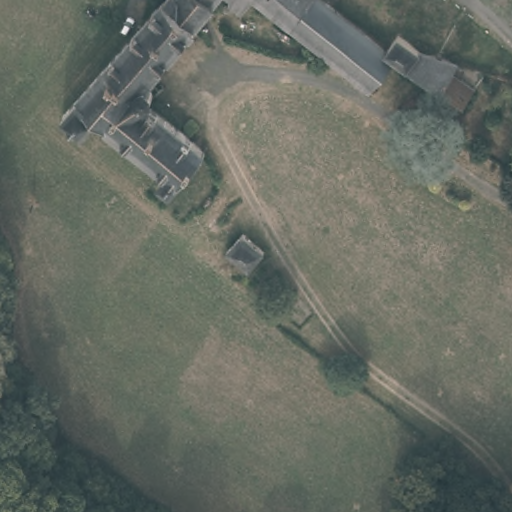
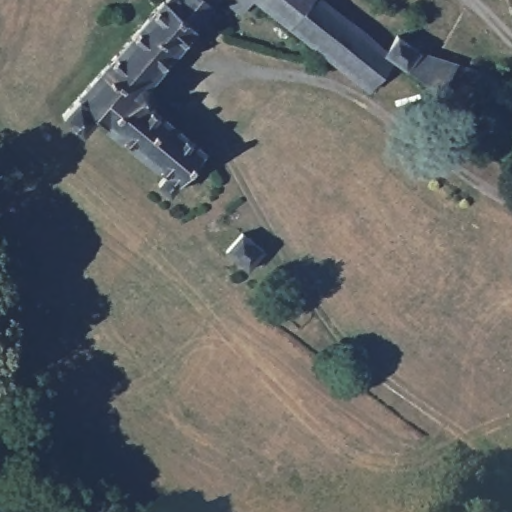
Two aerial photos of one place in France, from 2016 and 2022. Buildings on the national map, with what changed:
unchanged [(389,54),(404,37),(421,50),(459,66),(453,74),(460,81),(463,85),(462,90),(447,108),(432,99),(390,70),(371,91),(262,5),(249,21),(224,1),(195,34),(164,5),(169,0),(325,0),(389,54)]
unchanged [(164,5),(195,34),(149,85),(155,92),(147,104),(205,154),(168,195),(154,185),(163,175),(99,116),(81,135),(62,115),(164,5)]
unchanged [(250,270),(227,252),(245,230),(266,250),(252,266),(250,270)]

